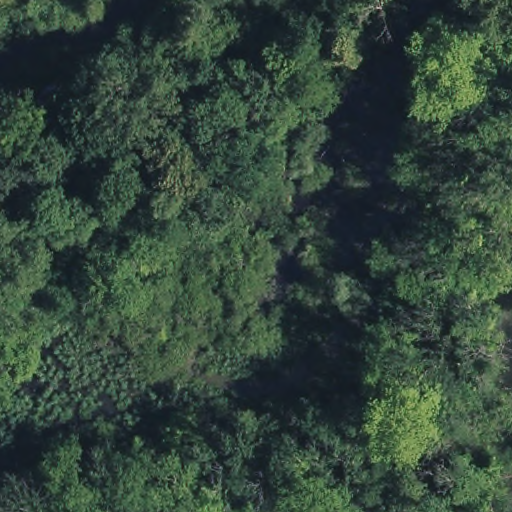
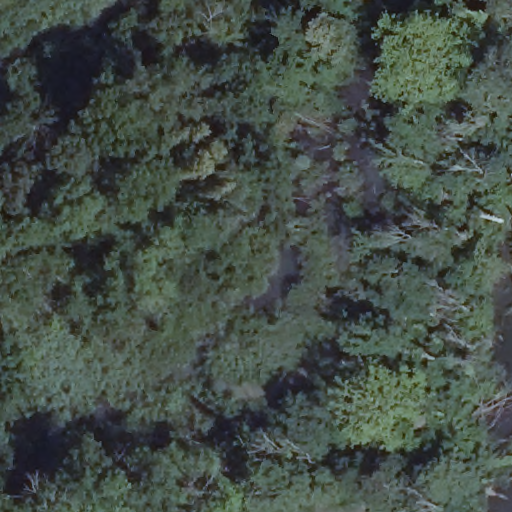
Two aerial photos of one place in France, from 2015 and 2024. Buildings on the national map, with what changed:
unchanged [(68,92),(75,99),(60,110),(52,101),(37,110),(30,100),(41,82),(61,73),(82,83),(68,92)]

